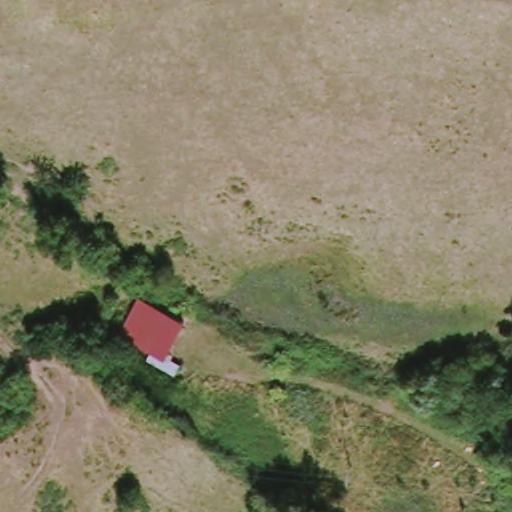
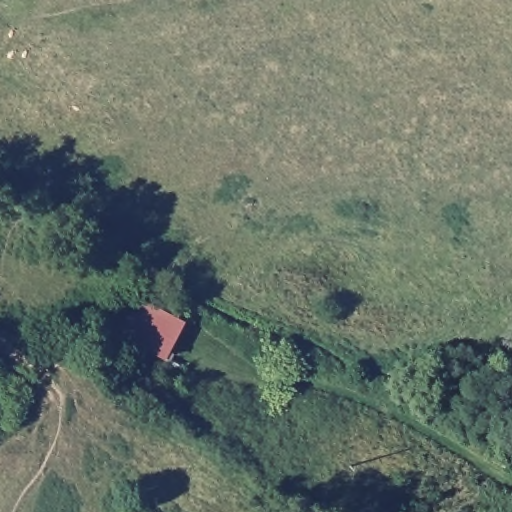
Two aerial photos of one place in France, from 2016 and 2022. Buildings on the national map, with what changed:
unchanged [(181,321),(161,356),(118,330),(138,295),(181,321)]

